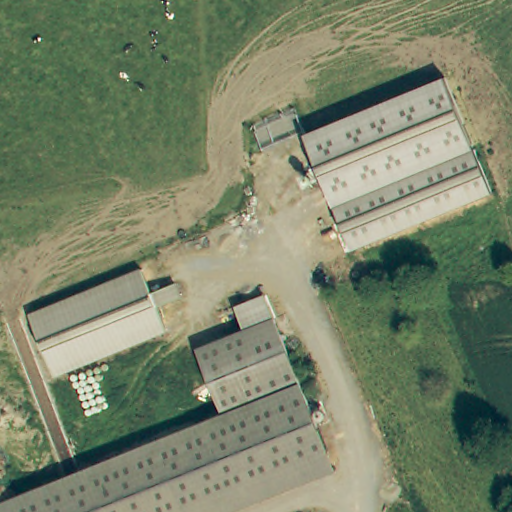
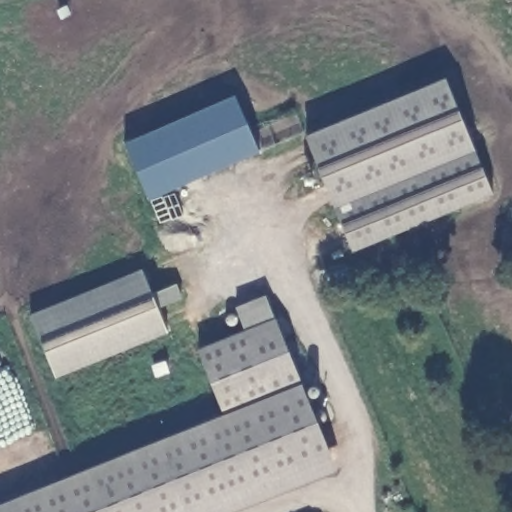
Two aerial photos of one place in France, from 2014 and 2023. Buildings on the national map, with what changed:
unchanged [(353,252),(305,135),(446,76),(493,195),(353,252)]
new [(125,141),(235,94),(260,150),(149,198),(125,141)]
unchanged [(159,307),(168,332),(56,377),(30,314),(142,268),(153,292),(177,283),(183,298),(159,307)]
unchanged [(203,348),(274,318),(331,447),(339,465),(226,512),(0,512),(0,508),(227,412),(203,348)]

